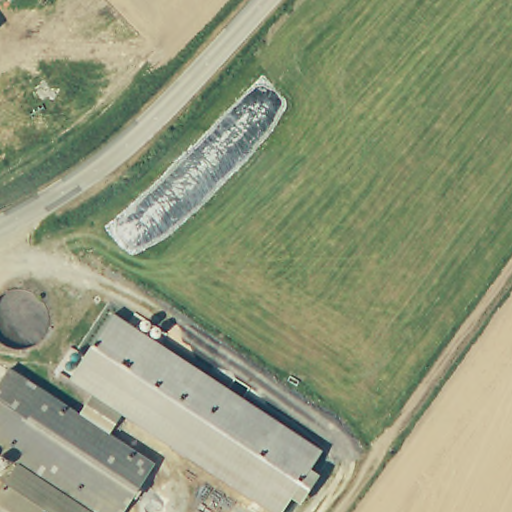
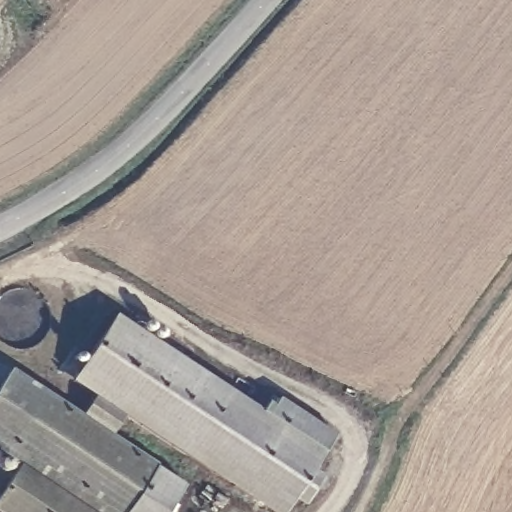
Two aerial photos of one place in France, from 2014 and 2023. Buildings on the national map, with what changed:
unchanged [(296,512),(281,512),(82,383),(125,317),(334,453),(322,472),(331,478),(314,505),(304,499),(296,512)]
unchanged [(105,512),(22,458),(0,444),(0,360),(9,366),(156,460),(122,512),(105,512)]
unchanged [(9,512),(0,506),(0,492),(22,458),(105,512),(9,512)]
new [(122,512),(153,465),(182,484),(165,512),(122,512)]

